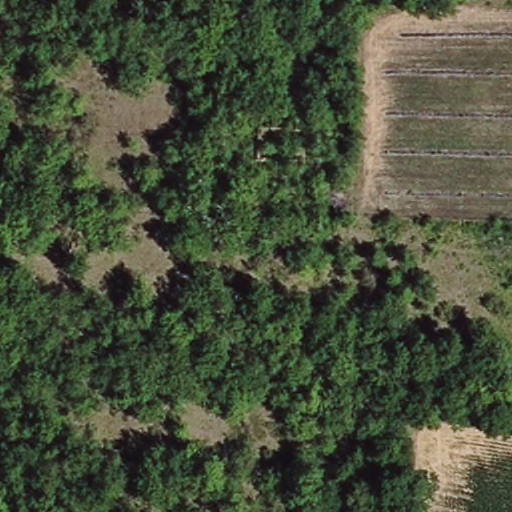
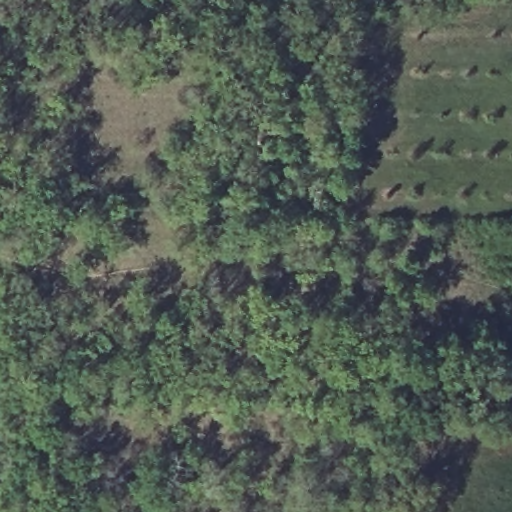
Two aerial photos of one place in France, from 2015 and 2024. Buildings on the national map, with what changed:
unchanged [(290,220),(287,226),(280,228),(274,225),(271,219),(272,212),(281,204),(287,207),(292,214),(290,220)]

